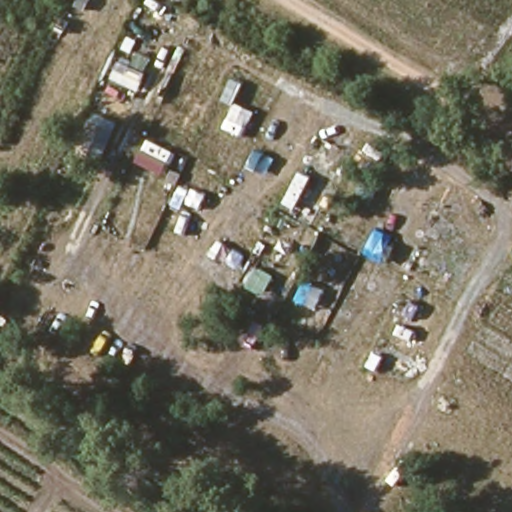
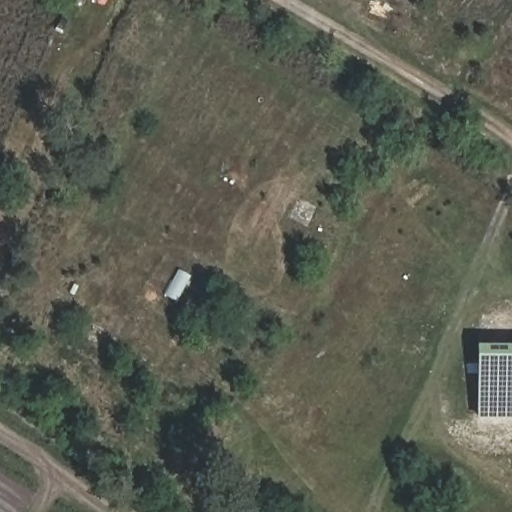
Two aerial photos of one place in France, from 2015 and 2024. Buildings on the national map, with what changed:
new [(478,418),(477,344),(512,344),(512,419),(478,418)]

